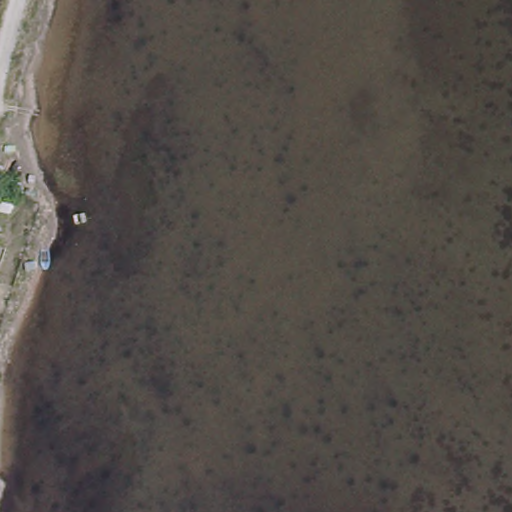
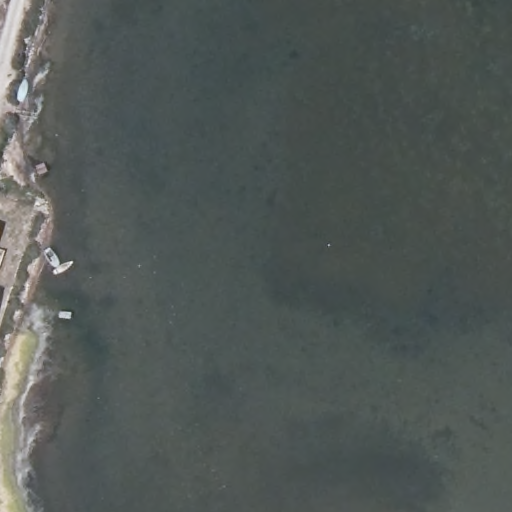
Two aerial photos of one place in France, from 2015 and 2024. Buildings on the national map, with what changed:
unchanged [(0,248),(5,250),(0,266),(0,248)]
unchanged [(0,291),(0,286),(1,286),(0,291)]

